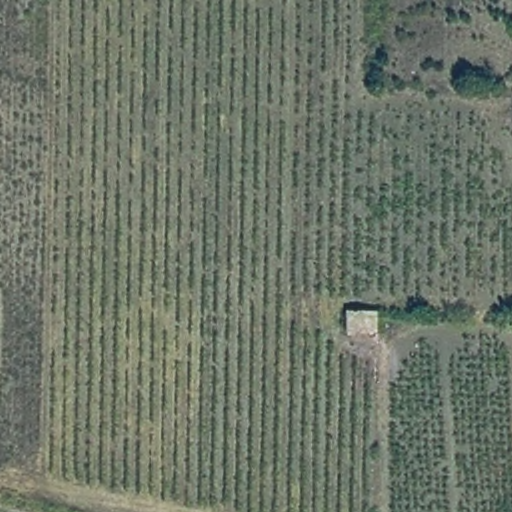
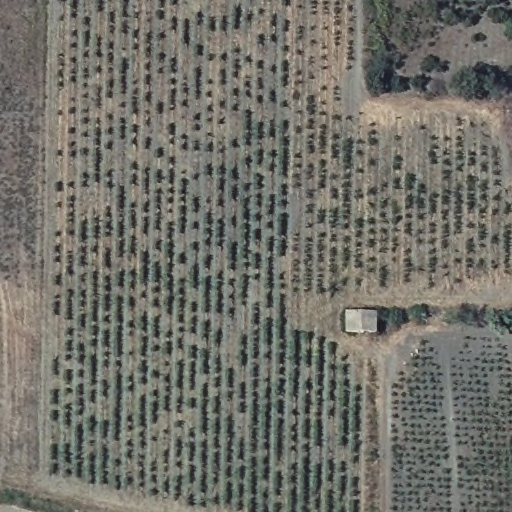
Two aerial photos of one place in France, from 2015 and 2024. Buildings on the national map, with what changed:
unchanged [(344,311),(377,311),(378,332),(344,333),(344,311)]

